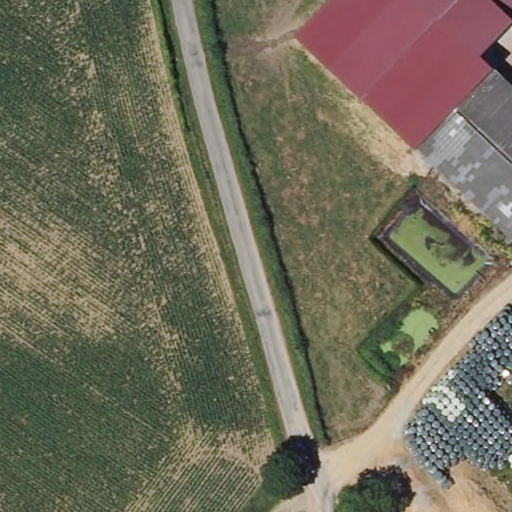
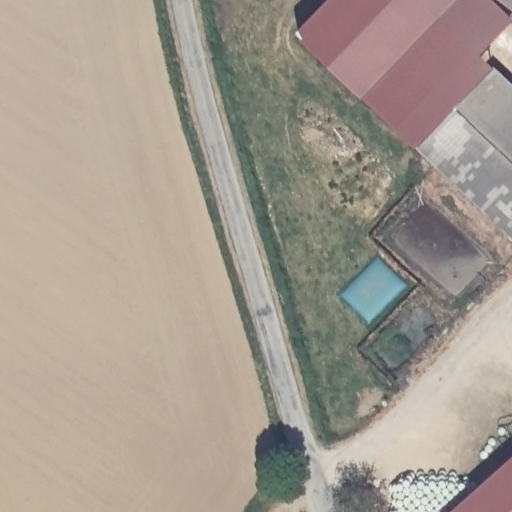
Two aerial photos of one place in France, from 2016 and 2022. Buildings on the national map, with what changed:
unchanged [(512,22),(479,55),(493,72),(416,149),(296,36),(331,0),(490,0),(512,21),(512,22)]
unchanged [(512,0),(512,21),(490,0),(512,0)]
unchanged [(493,72),(512,90),(512,242),(416,149),(493,72)]
new [(512,460),(512,512),(454,512),(512,460)]

